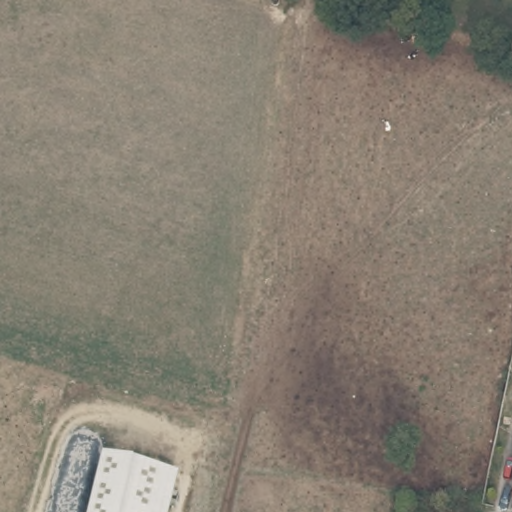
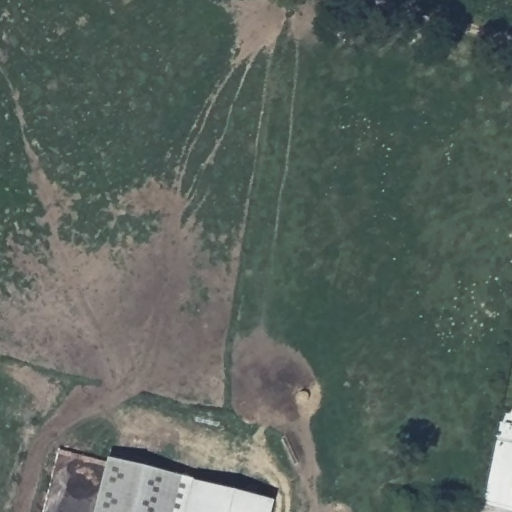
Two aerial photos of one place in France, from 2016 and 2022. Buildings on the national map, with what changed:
unchanged [(105,457),(179,477),(170,512),(91,512),(105,457)]
new [(179,477),(271,500),(269,512),(170,512),(179,477)]

